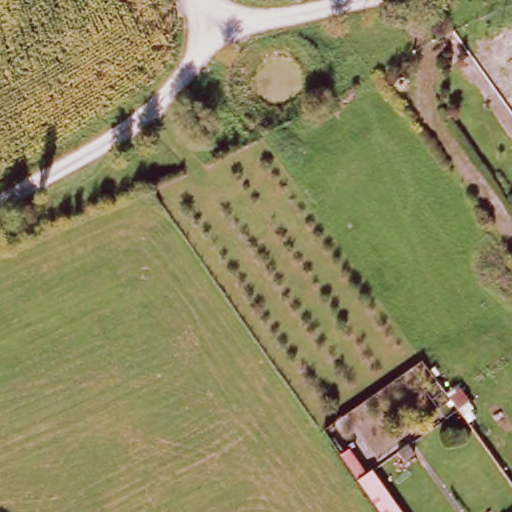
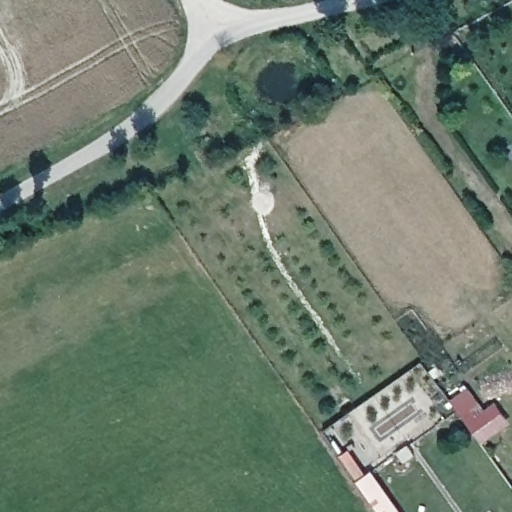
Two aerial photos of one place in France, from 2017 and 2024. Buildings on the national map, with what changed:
new [(468,388),(484,410),(494,402),(510,424),(482,444),(450,400),(468,388)]
unchanged [(352,459),(361,453),(377,477),(382,474),(408,512),(388,512),(368,483),(352,459)]

